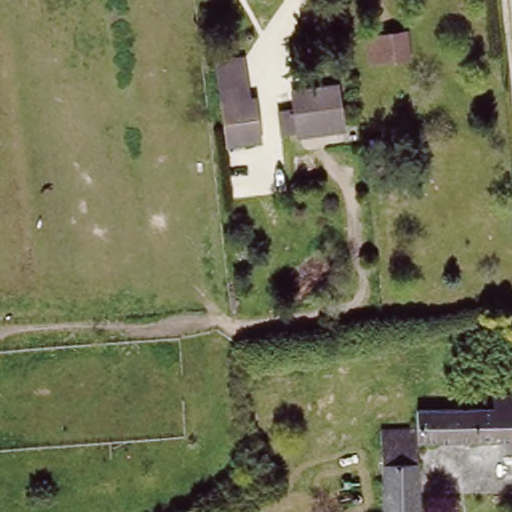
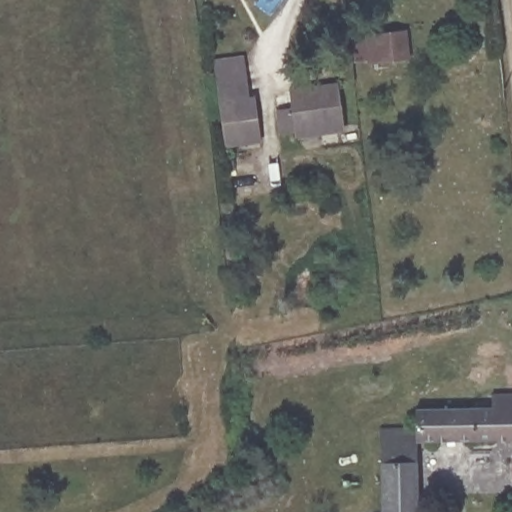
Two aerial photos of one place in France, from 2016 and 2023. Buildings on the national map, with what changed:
unchanged [(407,29),(411,60),(368,65),(366,35),(407,29)]
unchanged [(243,54),(249,97),(257,96),(262,141),(224,147),(215,57),(243,54)]
unchanged [(338,80),(345,131),(295,138),(295,132),(278,134),(275,110),(292,106),(290,88),(338,80)]
unchanged [(297,179),(317,176),(320,210),(301,212),(297,179)]
unchanged [(375,423),(420,422),(420,407),(425,407),(491,406),(491,394),(493,394),(512,394),(512,450),(427,449),(422,455),(422,512),(377,512),(377,509),(375,423)]

